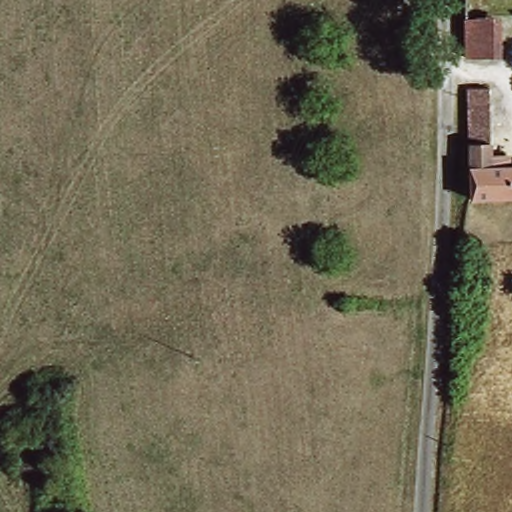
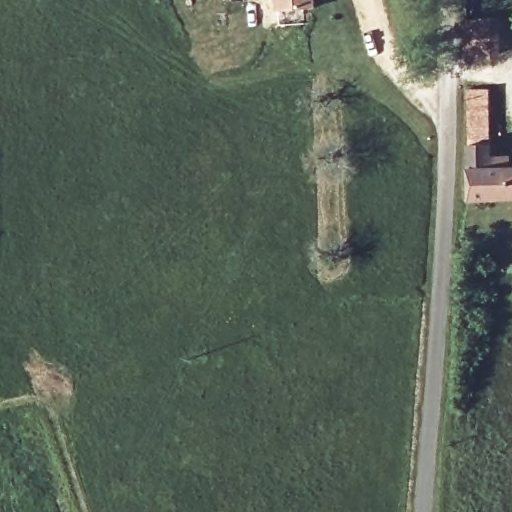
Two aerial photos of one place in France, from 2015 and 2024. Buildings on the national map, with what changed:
new [(277,9),(277,0),(317,0),(317,8),(277,9)]
unchanged [(502,16),(502,55),(467,54),(466,19),(502,16)]
unchanged [(467,90),(493,89),(495,159),(512,159),(512,196),(470,198),(467,90)]

